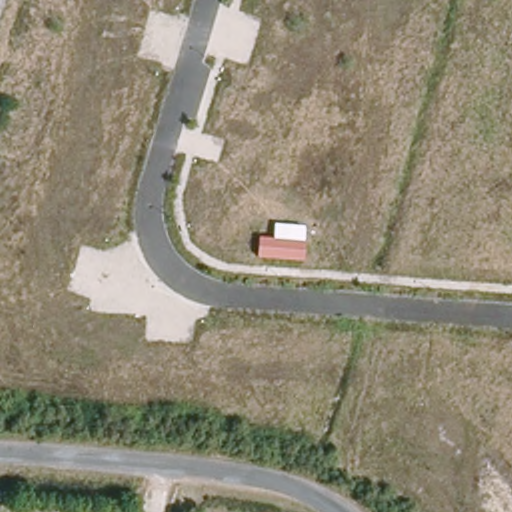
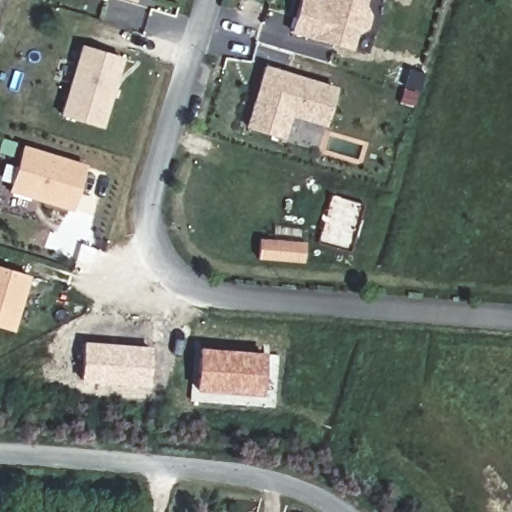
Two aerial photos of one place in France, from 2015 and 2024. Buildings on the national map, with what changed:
new [(134,2),(129,0),(134,0),(134,2)]
new [(320,1),(320,0),(362,0),(360,6),(365,15),(361,29),(352,34),(348,50),(289,32),(298,0),(316,0),(320,1)]
new [(120,60),(100,127),(56,114),(77,47),(120,60)]
new [(331,91),(320,127),(288,117),(282,139),(243,127),(260,69),(331,91)]
new [(82,161),(67,209),(6,190),(20,142),(82,161)]
new [(255,261),(255,239),(304,243),(302,264),(255,261)]
new [(28,277),(11,332),(0,329),(0,268),(28,277)]
new [(80,381),(83,342),(151,347),(148,386),(80,381)]
new [(194,392),(197,347),(266,352),(262,397),(194,392)]

